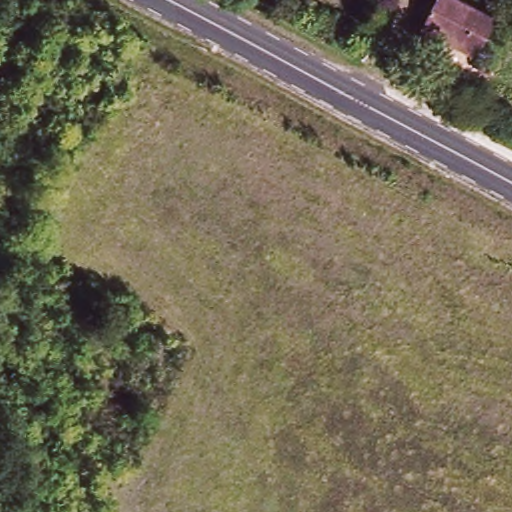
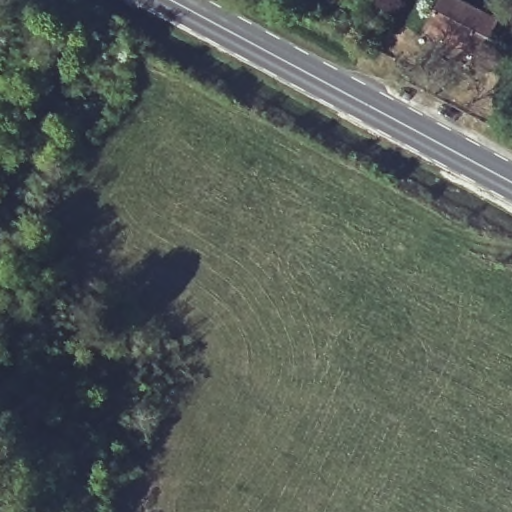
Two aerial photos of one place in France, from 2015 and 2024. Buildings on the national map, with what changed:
unchanged [(478,52),(428,28),(442,0),(447,0),(492,21),(478,52)]

